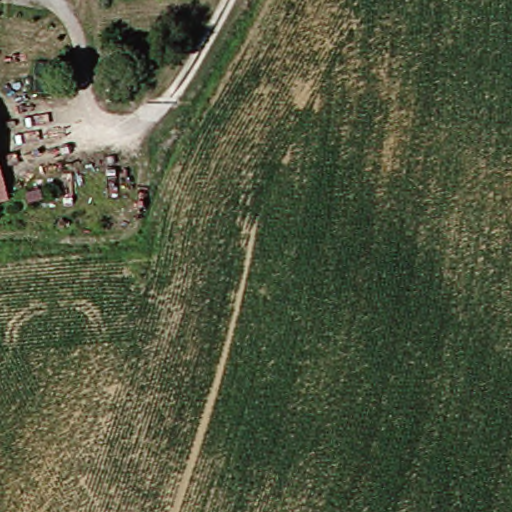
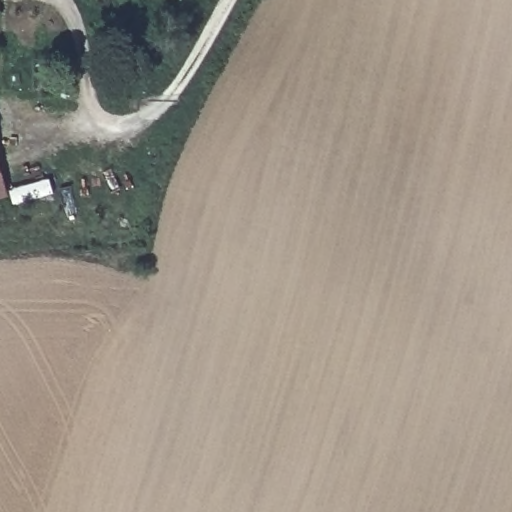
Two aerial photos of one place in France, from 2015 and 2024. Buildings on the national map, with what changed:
unchanged [(7,192),(0,194),(0,164),(7,192)]

